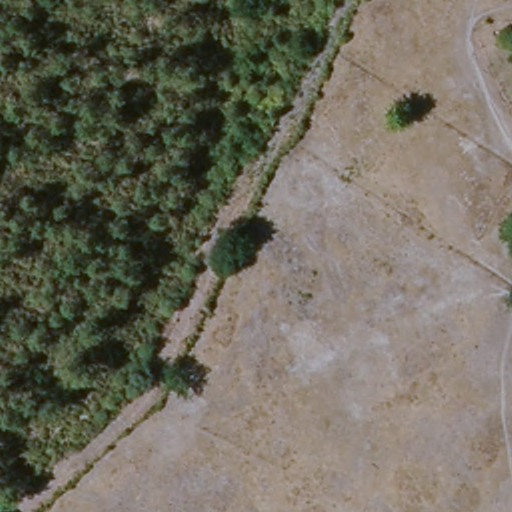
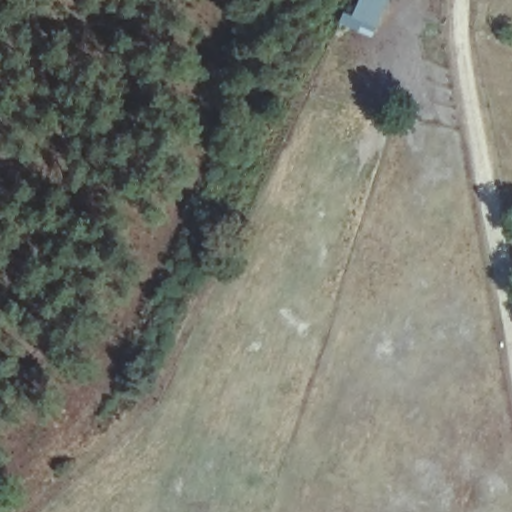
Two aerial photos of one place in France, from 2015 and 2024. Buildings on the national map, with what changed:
new [(375,37),(342,24),(346,15),(355,18),(362,0),(390,0),(375,37)]

